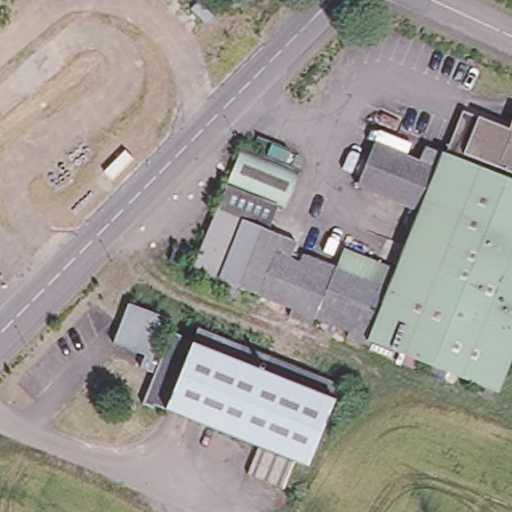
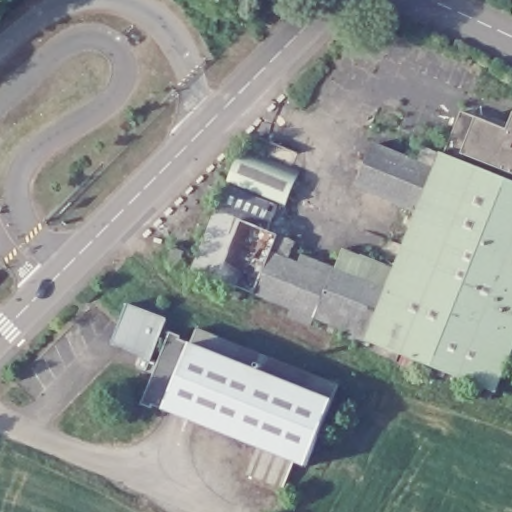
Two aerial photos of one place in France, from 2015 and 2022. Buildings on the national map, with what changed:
unchanged [(511,348),(486,407),(467,400),(470,390),(368,347),(365,353),(343,344),(346,337),(310,322),(307,329),(283,318),(286,311),(241,292),(241,293),(237,303),(224,297),(228,288),(190,272),(226,188),(225,188),(241,149),(301,174),(285,213),(278,210),(268,234),(295,245),(288,263),(297,266),(301,258),(335,272),(342,253),(397,276),(421,218),(356,190),(362,177),(356,174),(360,164),(366,167),(374,148),(419,167),(425,152),(445,160),(463,117),(509,136),(512,129),(512,348),(511,348)]
unchanged [(178,239),(188,243),(182,257),(173,253),(178,239)]
unchanged [(145,359),(112,345),(129,307),(167,323),(152,361),(161,365),(180,319),(190,324),(189,326),(201,331),(167,414),(157,410),(156,414),(143,408),(155,379),(139,372),(145,359)]
unchanged [(343,390),(309,473),(296,468),(261,453),(167,414),(201,331),(343,390)]
unchanged [(285,495),(250,480),(261,453),(296,468),(285,495)]

